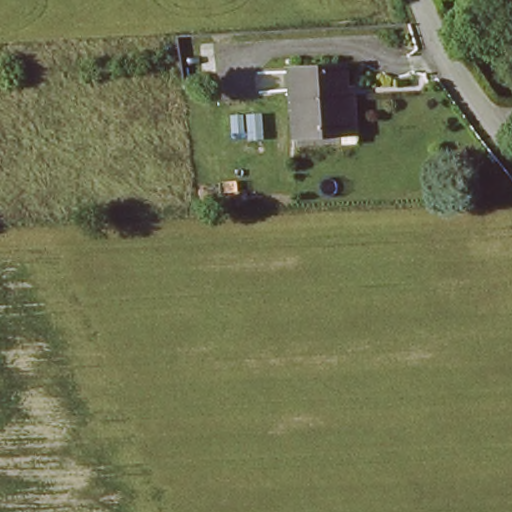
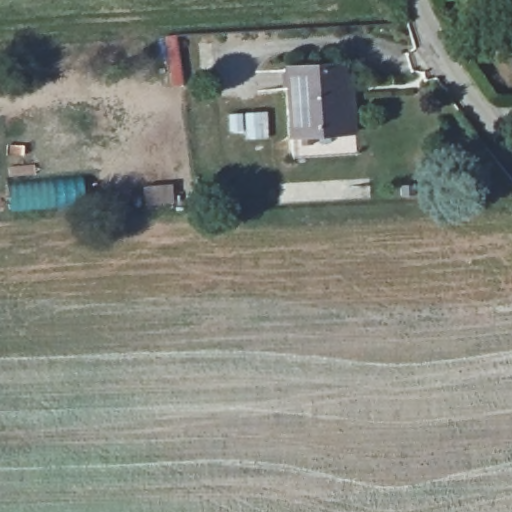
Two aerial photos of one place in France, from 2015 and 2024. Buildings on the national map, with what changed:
unchanged [(340,132),(289,132),(293,62),(350,62),(349,85),(348,132),(340,132)]

